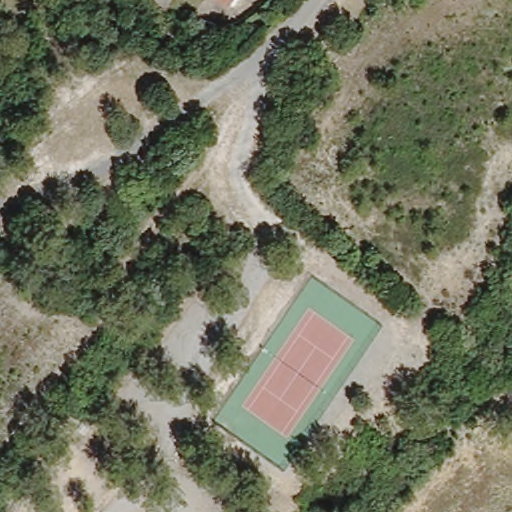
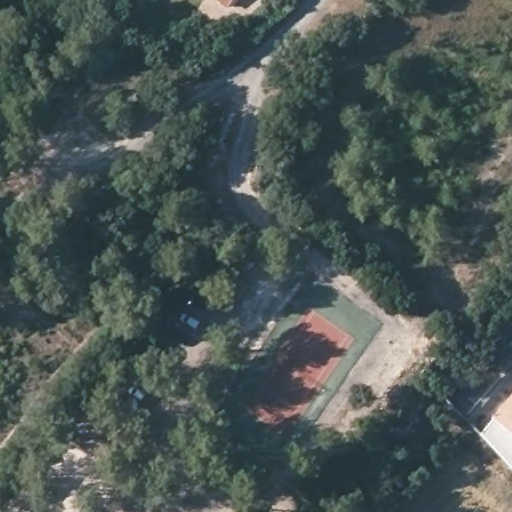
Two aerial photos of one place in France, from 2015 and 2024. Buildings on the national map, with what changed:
unchanged [(207,0),(227,0),(218,10),(207,0)]
new [(478,434),(512,396),(512,470),(478,434)]

